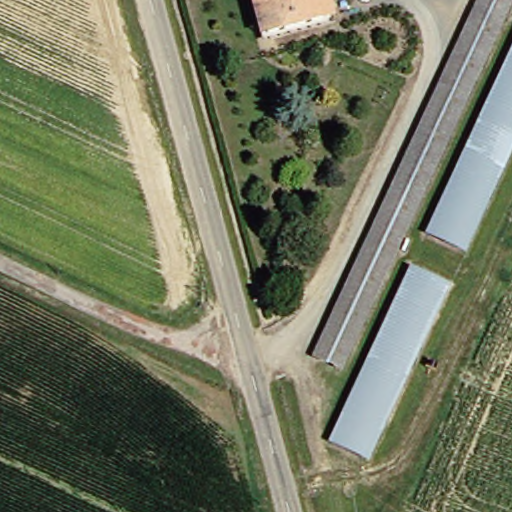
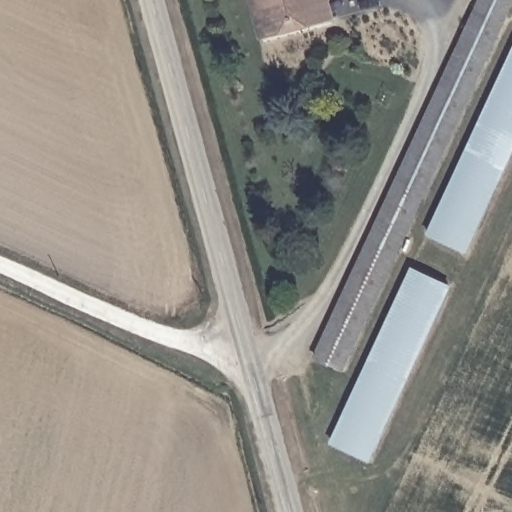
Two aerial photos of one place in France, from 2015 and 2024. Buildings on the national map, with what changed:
unchanged [(258,0),(264,29),(319,19),(315,0),(328,0),(333,26),(257,40),(249,0),(258,0)]
unchanged [(264,29),(258,0),(315,0),(319,19),(264,29)]
unchanged [(512,0),(512,15),(349,366),(322,353),(487,0),(512,0)]
unchanged [(471,254),(429,236),(512,60),(512,166),(471,254)]
unchanged [(375,463),(335,443),(415,268),(457,287),(375,463)]

